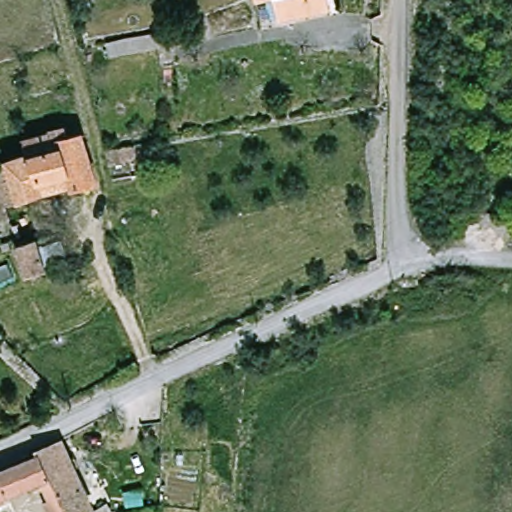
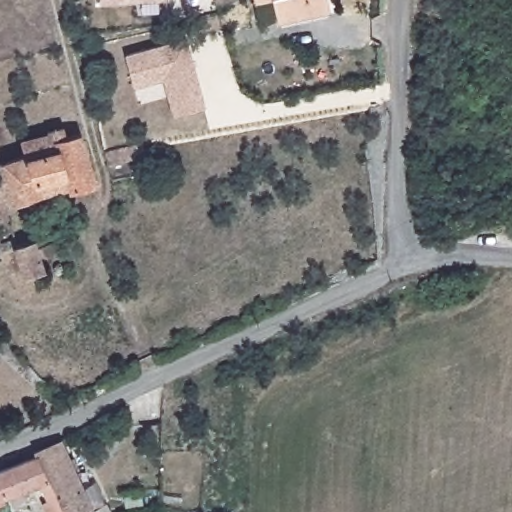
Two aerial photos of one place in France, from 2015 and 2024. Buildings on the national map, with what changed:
new [(97,3),(97,0),(154,0),(97,3)]
unchanged [(328,10),(260,25),(255,0),(325,0),(328,10)]
unchanged [(155,45),(93,65),(88,48),(152,33),(155,45)]
new [(186,40),(206,107),(174,116),(164,80),(134,87),(125,56),(186,40)]
unchanged [(0,225),(0,165),(29,155),(25,141),(52,132),(51,130),(66,125),(70,138),(83,134),(100,185),(76,192),(74,185),(8,207),(13,221),(0,225)]
unchanged [(146,160),(105,167),(103,154),(143,146),(146,160)]
unchanged [(0,241),(0,234),(2,240),(0,241)]
unchanged [(48,267),(30,273),(20,242),(38,236),(48,267)]
unchanged [(39,454),(60,445),(64,443),(96,510),(110,505),(113,512),(91,512),(67,512),(40,457),(39,454)]
unchanged [(50,512),(47,505),(51,502),(44,482),(0,500),(0,473),(40,457),(67,512),(50,512)]

